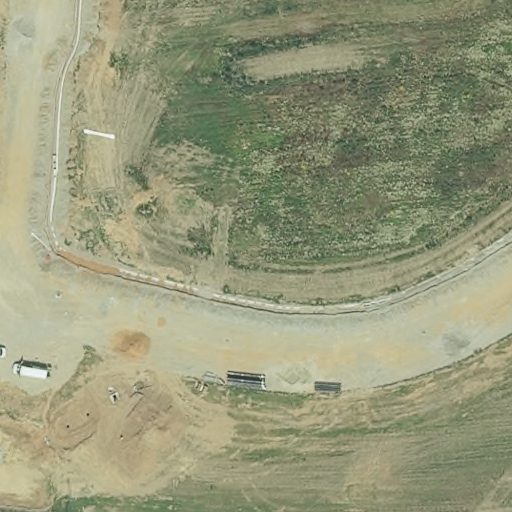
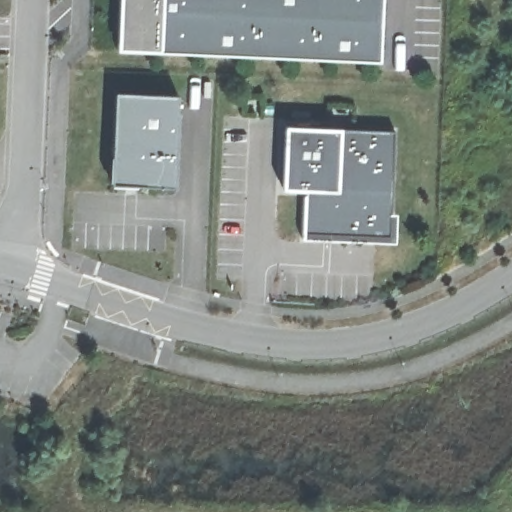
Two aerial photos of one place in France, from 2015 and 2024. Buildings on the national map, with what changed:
new [(381,16),(379,60),(117,48),(118,0),(332,0),(331,14),(381,16)]
new [(331,14),(332,0),(381,0),(381,16),(331,14)]
unchanged [(178,93),(173,186),(137,183),(111,182),(112,152),(114,90),(178,93)]
new [(394,129),(390,236),(374,236),(374,235),(304,232),(304,238),(302,238),(304,188),(282,187),(284,125),(394,129)]

